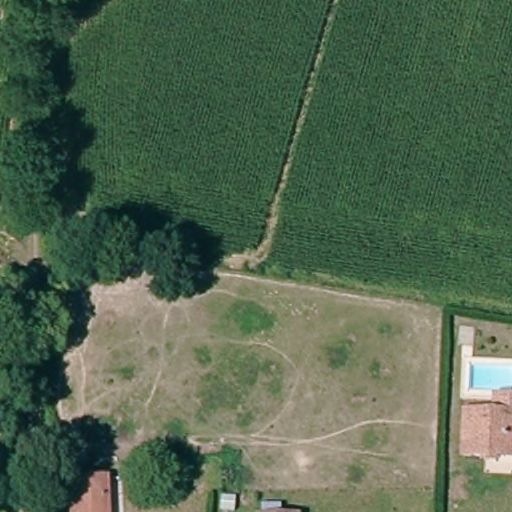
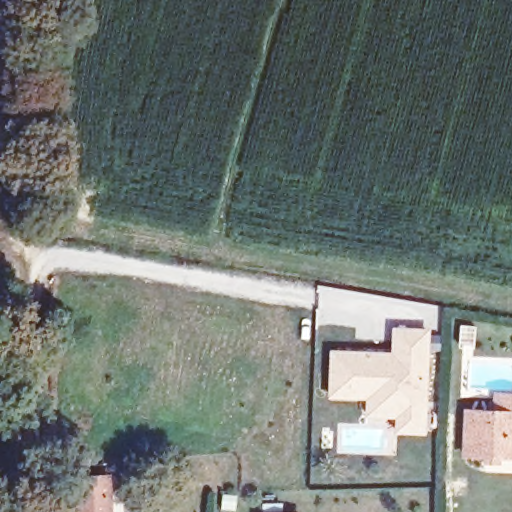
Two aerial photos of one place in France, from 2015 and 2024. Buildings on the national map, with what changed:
new [(390,352),(391,326),(428,328),(425,434),(393,433),(394,418),(365,416),(365,399),(327,397),(328,349),(390,352)]
unchanged [(482,471),(482,464),(458,463),(460,415),(490,415),(490,396),(512,397),(512,465),(495,464),(494,472),(482,471)]
unchanged [(63,450),(89,449),(90,471),(108,472),(112,512),(65,512),(63,479),(63,450)]

